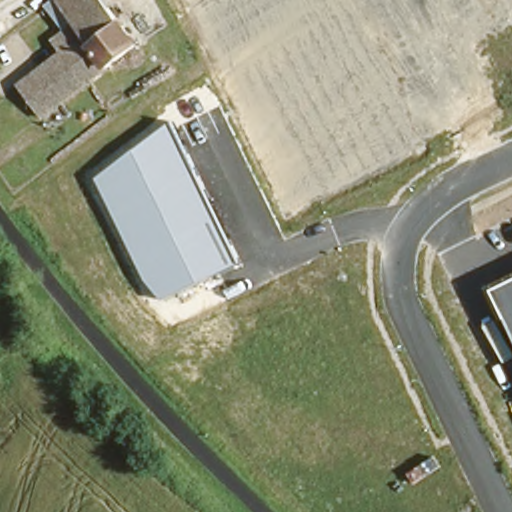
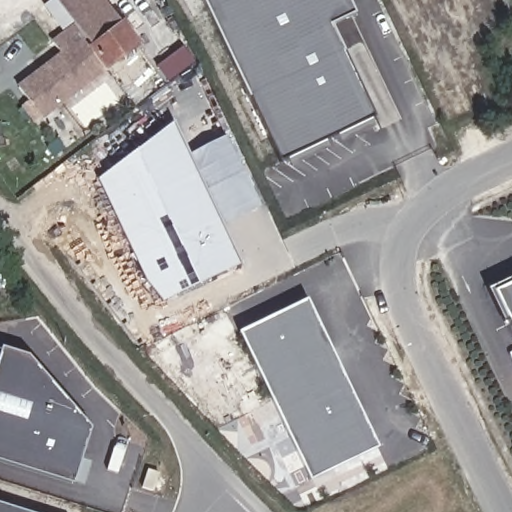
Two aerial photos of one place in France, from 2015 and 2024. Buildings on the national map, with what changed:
unchanged [(32,114),(12,88),(65,47),(56,34),(77,19),(62,0),(107,0),(135,39),(32,114)]
new [(353,15),(330,26),(374,117),(281,161),(203,0),(346,0),(353,15)]
unchanged [(163,300),(146,280),(97,179),(174,122),(241,263),(163,300)]
new [(216,137),(230,130),(255,183),(228,196),(206,150),(219,143),(216,137)]
unchanged [(495,291),(512,283),(512,327),(495,291)]
new [(309,299),(389,450),(319,487),(240,336),(309,299)]
new [(32,358),(94,430),(76,486),(0,462),(0,362),(4,349),(32,358)]
new [(0,512),(0,503),(28,512),(0,512)]

